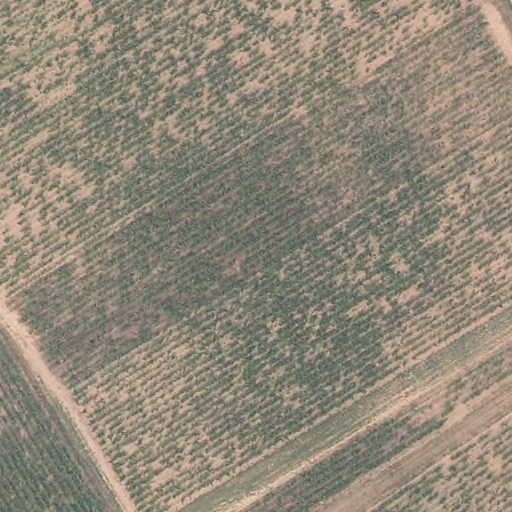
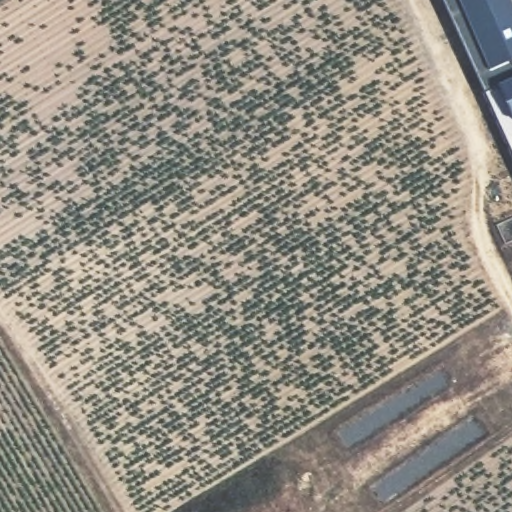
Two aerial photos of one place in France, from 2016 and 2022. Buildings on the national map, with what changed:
new [(441,0),(512,0),(512,156),(483,92),(441,0)]

